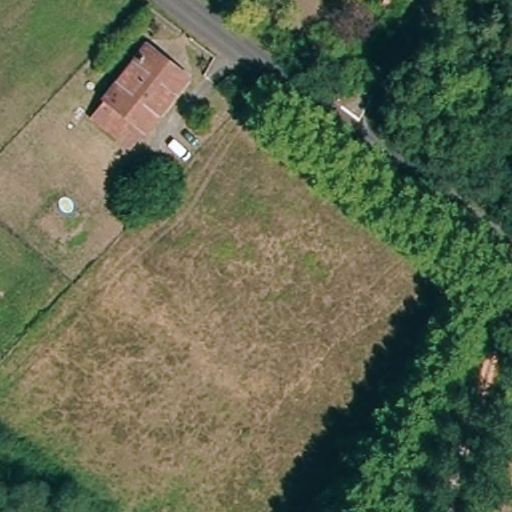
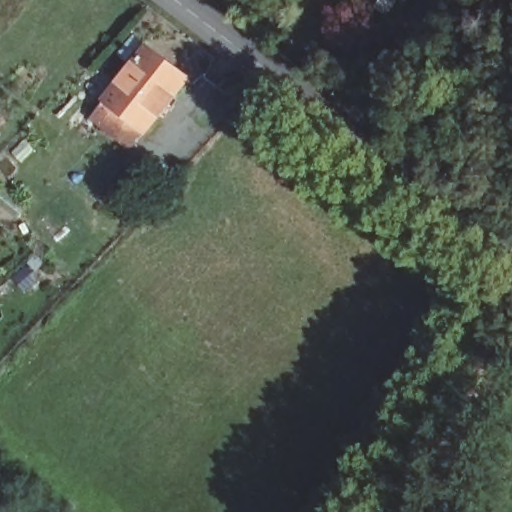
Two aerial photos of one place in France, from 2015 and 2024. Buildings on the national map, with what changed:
unchanged [(144,50),(184,79),(129,148),(92,117),(144,50)]

